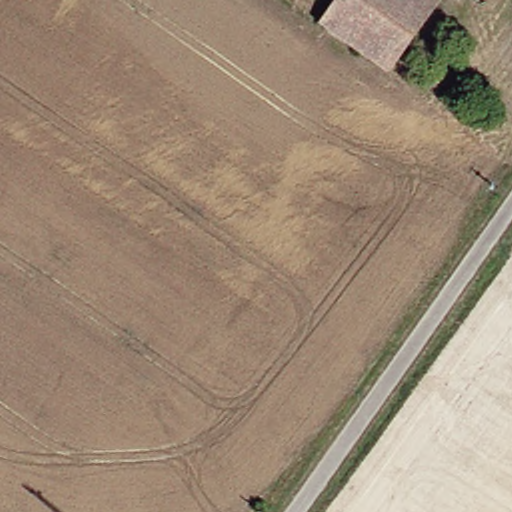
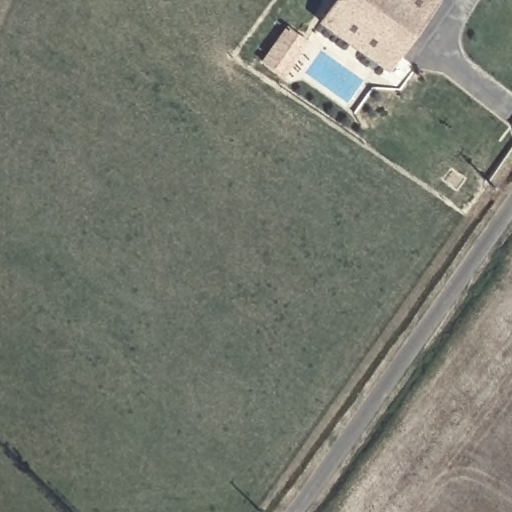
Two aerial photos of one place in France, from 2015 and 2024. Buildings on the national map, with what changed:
unchanged [(386,66),(319,20),(331,3),(326,0),(435,0),(386,66)]
new [(288,24),(311,41),(286,76),(263,60),(288,24)]

